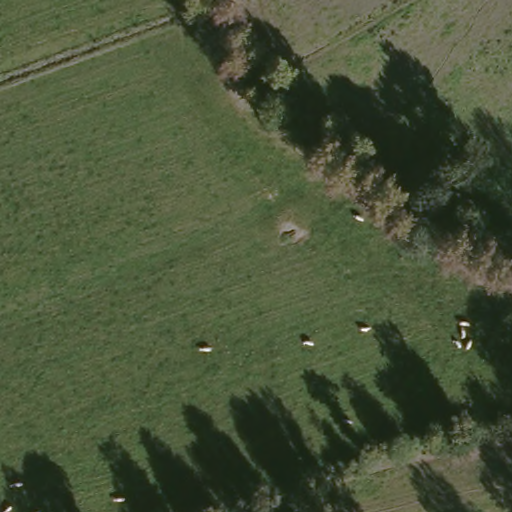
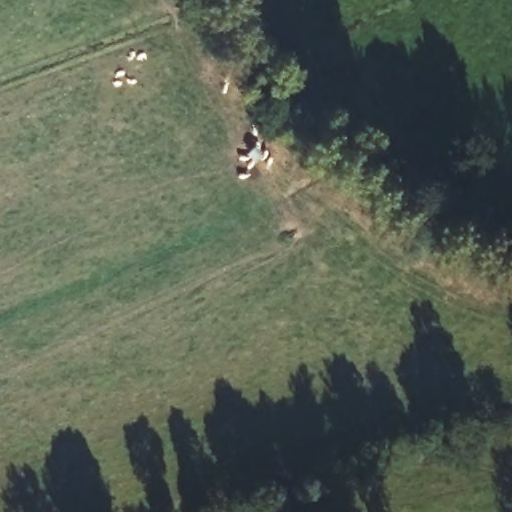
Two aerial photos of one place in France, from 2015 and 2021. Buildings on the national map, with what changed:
[]

